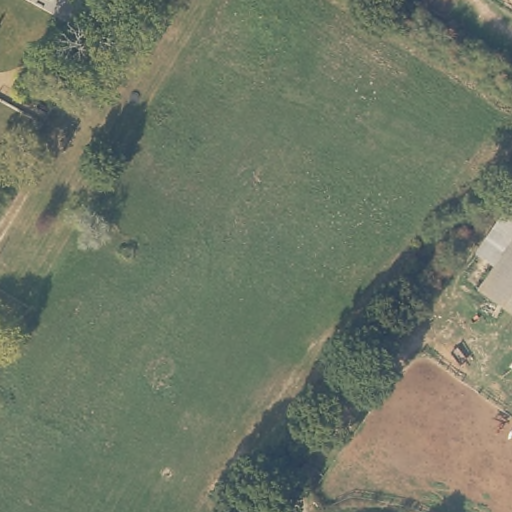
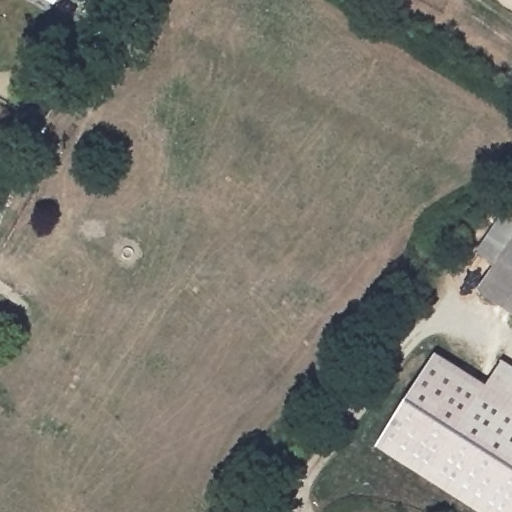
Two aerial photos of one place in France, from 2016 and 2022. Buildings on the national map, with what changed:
unchanged [(512,239),(512,310),(480,289),(512,239)]
new [(436,351),(485,383),(501,358),(512,365),(512,512),(481,512),(375,445),(436,351)]

